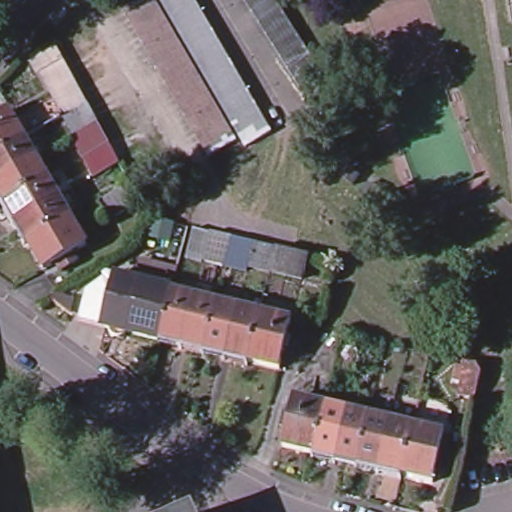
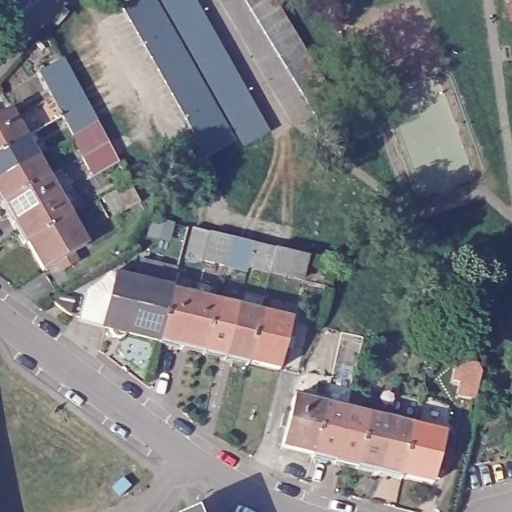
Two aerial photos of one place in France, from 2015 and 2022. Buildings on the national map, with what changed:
unchanged [(207,155),(120,10),(137,0),(150,0),(232,141),(207,155)]
unchanged [(241,147),(156,0),(191,0),(268,133),(241,147)]
unchanged [(275,0),(336,93),(331,96),(312,106),(243,0),(275,0)]
unchanged [(81,161),(68,138),(73,135),(63,117),(37,74),(59,61),(84,106),(94,125),(106,147),(117,166),(91,180),(81,161)]
unchanged [(8,110),(11,109),(27,136),(0,152),(0,115),(8,110)]
unchanged [(0,178),(0,152),(27,136),(38,156),(0,178)]
unchanged [(1,205),(0,204),(0,178),(38,156),(50,177),(1,205)]
unchanged [(11,224),(1,205),(50,177),(60,195),(11,224)]
unchanged [(102,200),(127,185),(137,204),(112,220),(102,200)]
unchanged [(72,215),(26,241),(22,244),(11,224),(60,195),(72,215)]
unchanged [(22,244),(26,241),(72,215),(87,242),(40,269),(22,244)]
unchanged [(242,267),(219,262),(200,258),(183,255),(191,225),(207,230),(227,235),(249,239),(271,245),(301,252),(294,282),(264,273),(242,267)]
unchanged [(155,340),(123,333),(122,335),(121,336),(119,338),(116,339),(113,339),(111,338),(108,336),(107,334),(106,332),(106,329),(102,328),(103,323),(76,317),(79,306),(82,292),(104,277),(168,291),(156,338),(156,340),(155,340)]
unchanged [(155,343),(155,340),(156,340),(156,338),(168,291),(190,296),(178,349),(155,343)]
unchanged [(178,349),(190,296),(209,301),(196,353),(178,349)]
unchanged [(196,353),(209,301),(232,306),(221,359),(196,353)]
unchanged [(221,359),(232,306),(255,311),(243,360),(242,364),(221,359)]
unchanged [(271,366),(243,360),(255,311),(273,315),(282,317),(271,366)]
unchanged [(311,457),(281,450),(284,436),(278,435),(282,416),(289,416),(293,400),(324,408),(311,457)]
unchanged [(346,413),(332,466),(310,461),(311,457),(324,408),(346,413)]
unchanged [(353,471),(332,466),(346,413),(368,418),(353,471)]
unchanged [(390,423),(377,477),(353,471),(368,418),(390,423)]
unchanged [(411,428),(397,476),(396,482),(377,477),(390,423),(411,428)]
unchanged [(397,476),(411,428),(442,435),(431,484),(397,476)]

